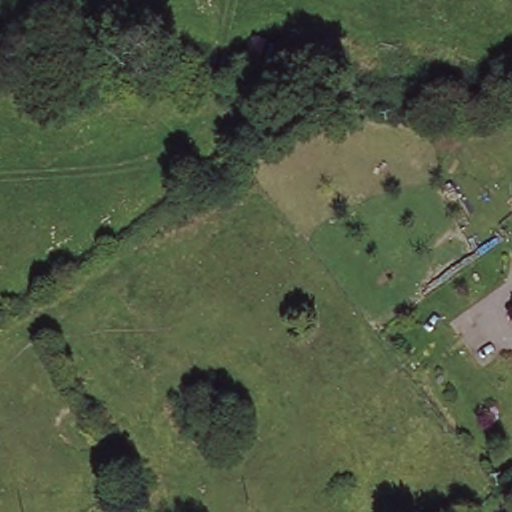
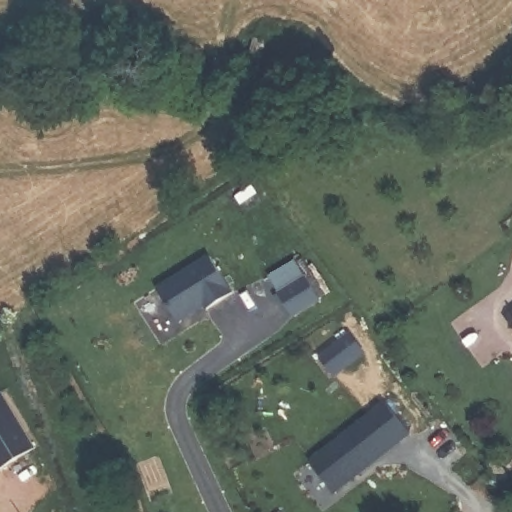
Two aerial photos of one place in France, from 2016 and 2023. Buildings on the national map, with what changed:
new [(213,254),(236,290),(208,308),(206,305),(179,321),(158,288),(213,254)]
new [(310,272),(324,297),(294,316),(280,291),(310,272)]
unchanged [(512,308),(512,317),(508,310),(512,308)]
new [(37,445),(0,468),(0,391),(3,389),(37,445)]
new [(390,396),(415,430),(335,493),(311,459),(390,396)]

